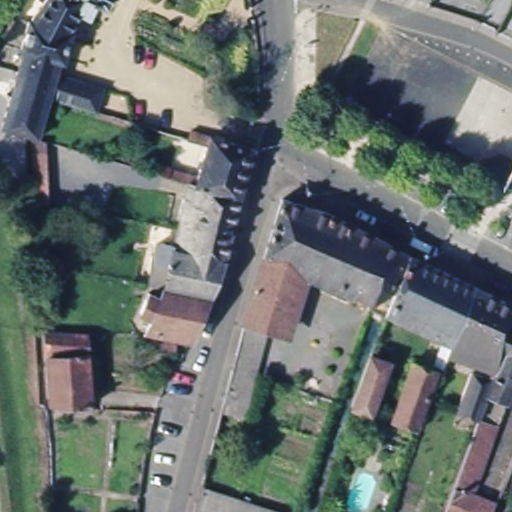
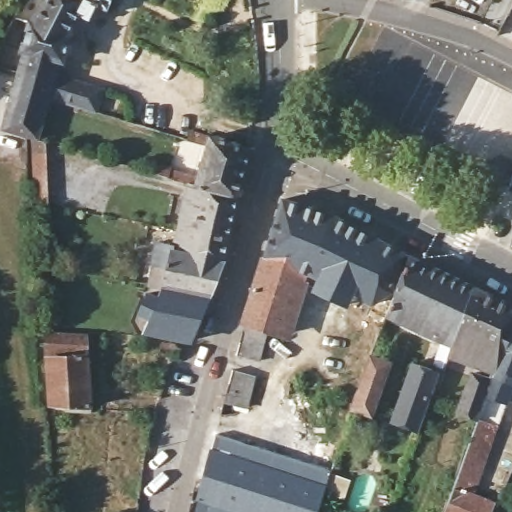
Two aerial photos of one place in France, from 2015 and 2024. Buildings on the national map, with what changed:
unchanged [(26,133),(0,125),(25,50),(20,49),(30,22),(33,23),(42,0),(109,0),(105,9),(94,5),(87,20),(74,14),(66,34),(69,35),(60,60),(59,60),(54,76),(102,91),(96,114),(47,100),(37,137),(26,133)]
unchanged [(184,134),(249,154),(242,173),(236,193),(234,202),(190,189),(200,152),(180,146),(180,145),(184,134)]
unchanged [(190,189),(234,202),(224,242),(176,233),(190,189)]
unchanged [(328,214),(405,254),(383,316),(299,272),(281,331),(268,328),(260,362),(249,403),(225,397),(281,199),(328,214)]
unchanged [(165,272),(146,267),(153,246),(171,251),(176,233),(224,242),(219,265),(205,300),(160,292),(165,272)]
unchanged [(470,286),(451,343),(387,313),(407,255),(470,286)]
unchanged [(493,371),(472,421),(455,415),(471,377),(476,378),(481,364),(449,348),(451,343),(470,286),(512,307),(512,333),(497,372),(493,371)]
unchanged [(141,335),(160,292),(205,300),(186,342),(141,335)]
unchanged [(474,432),(497,372),(512,333),(512,401),(473,492),(495,502),(491,512),(444,512),(474,432)]
unchanged [(45,407),(41,337),(83,340),(86,409),(45,407)]
unchanged [(357,409),(362,394),(375,356),(395,363),(375,416),(357,409)]
unchanged [(437,376),(422,417),(417,432),(389,422),(408,366),(437,376)]
new [(197,490),(210,447),(212,448),(215,435),(330,472),(351,480),(344,501),(324,494),(318,512),(274,512),(201,492),(197,490)]
unchanged [(201,492),(274,512),(196,512),(201,492)]

